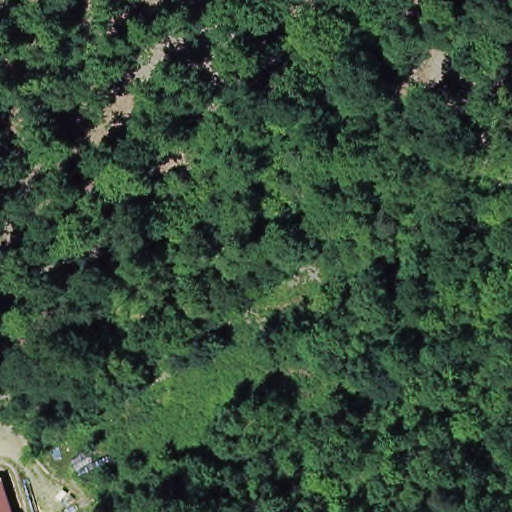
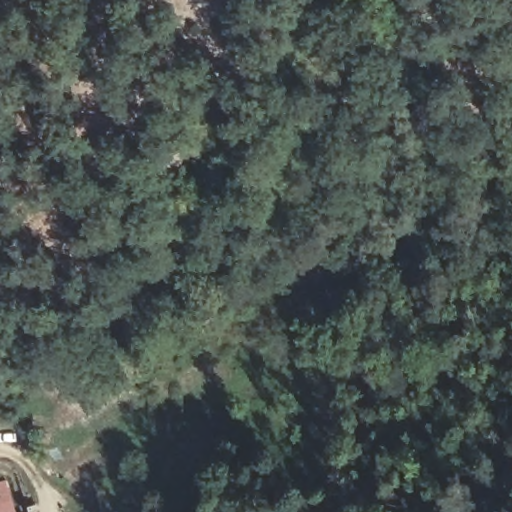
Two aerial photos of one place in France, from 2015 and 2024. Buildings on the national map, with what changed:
unchanged [(12,512),(0,512),(0,483),(3,482),(12,512)]

